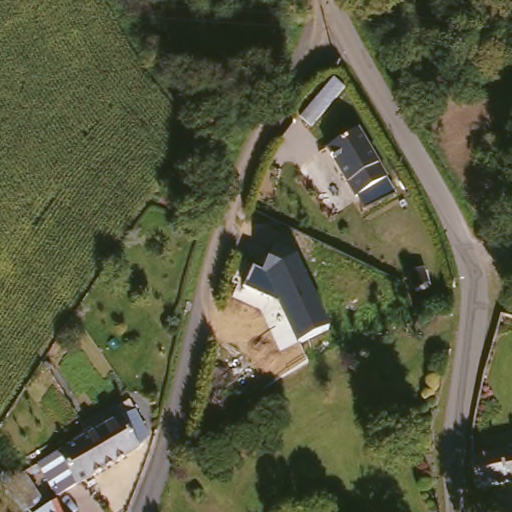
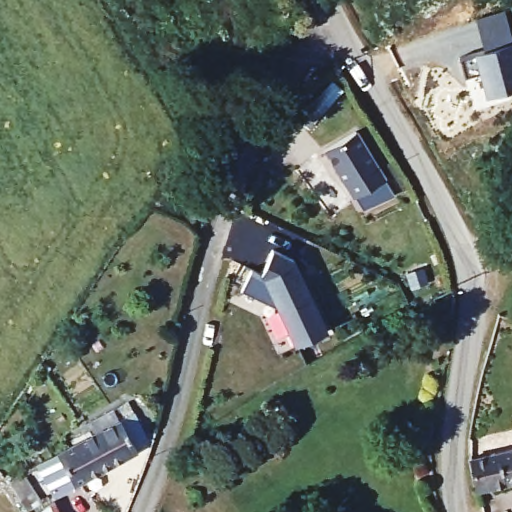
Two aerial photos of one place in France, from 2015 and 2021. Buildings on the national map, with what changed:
new [(477,21),(507,14),(512,34),(512,91),(490,98),(483,75),(467,79),(461,59),(486,52),(477,21)]
unchanged [(358,197),(355,200),(325,150),(358,129),(396,195),(365,210),(358,197)]
unchanged [(277,305),(243,290),(252,270),(262,274),(277,248),(297,260),(328,331),(296,346),(277,305)]
unchanged [(87,438),(82,425),(105,411),(112,426),(136,412),(142,425),(134,429),(142,445),(47,502),(29,471),(87,438)]
unchanged [(466,457),(512,445),(512,480),(472,489),(466,457)]
unchanged [(55,502),(69,512),(46,512),(55,502)]

